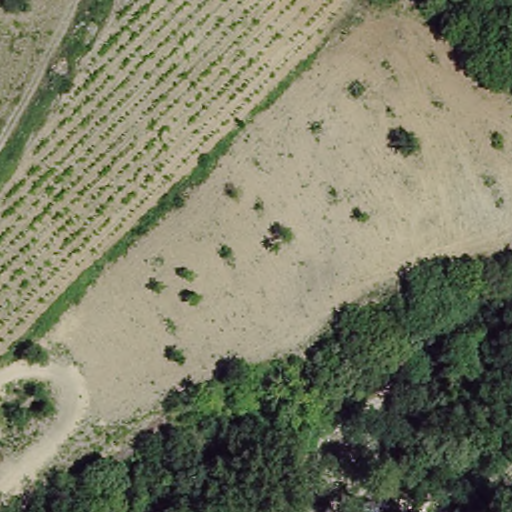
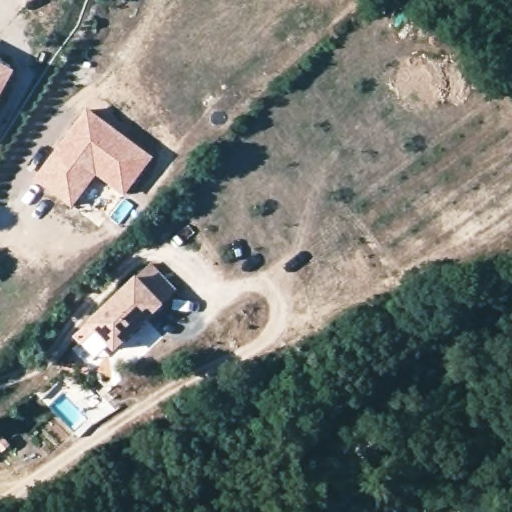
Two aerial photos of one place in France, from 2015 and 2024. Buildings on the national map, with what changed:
new [(19,72),(0,105),(0,61),(19,72)]
new [(94,111),(158,160),(130,195),(102,174),(77,207),(49,185),(42,179),(53,165),(94,111)]
new [(155,266),(180,293),(118,351),(93,323),(155,266)]

